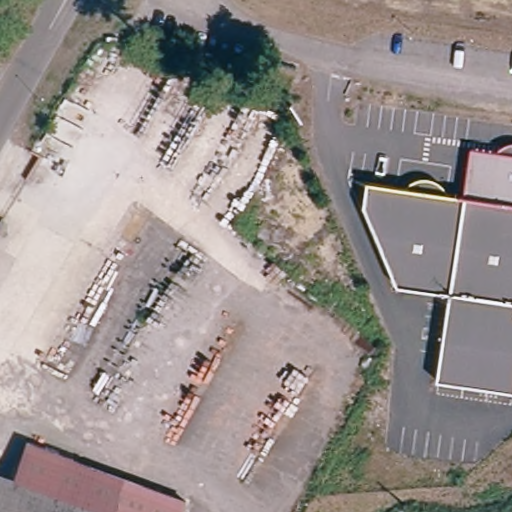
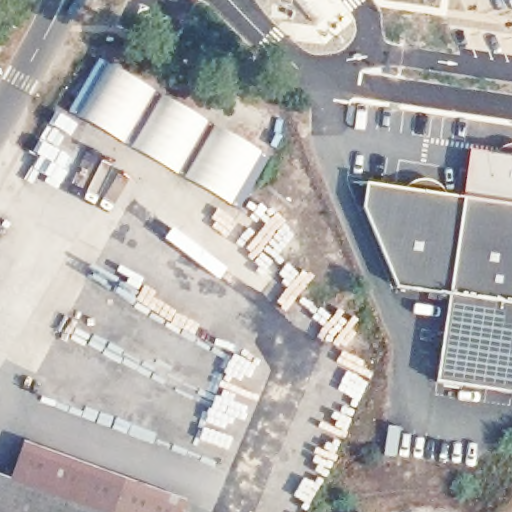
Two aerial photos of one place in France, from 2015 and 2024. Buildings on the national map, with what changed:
new [(99,58),(155,91),(124,143),(69,111),(99,58)]
new [(161,95),(208,121),(177,174),(131,147),(161,95)]
new [(215,126),(261,153),(231,204),(184,177),(215,126)]
unchanged [(472,149),(497,153),(501,149),(507,146),(512,145),(512,202),(485,198),(466,194),(472,149)]
unchanged [(413,182),(420,178),(428,178),(434,180),(438,181),(442,184),(445,188),(447,191),(436,189),(408,185),(413,182)]
unchanged [(512,202),(512,392),(438,380),(453,292),(400,283),(366,203),(370,179),(408,185),(436,189),(450,192),(485,198),(512,202)]
new [(24,441),(31,444),(16,489),(0,484),(0,475),(10,478),(24,441)]
unchanged [(33,441),(128,474),(193,498),(187,512),(0,512),(0,484),(16,489),(33,441)]

